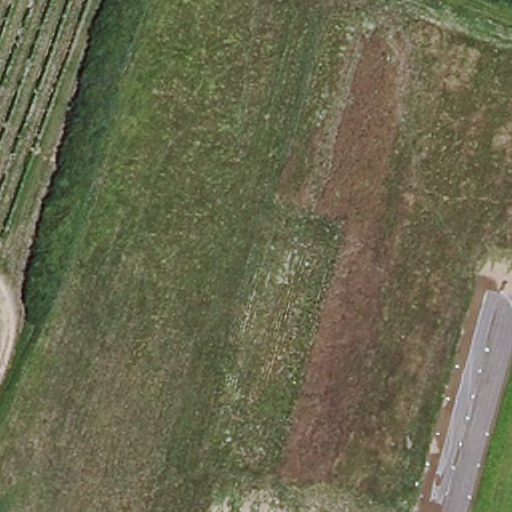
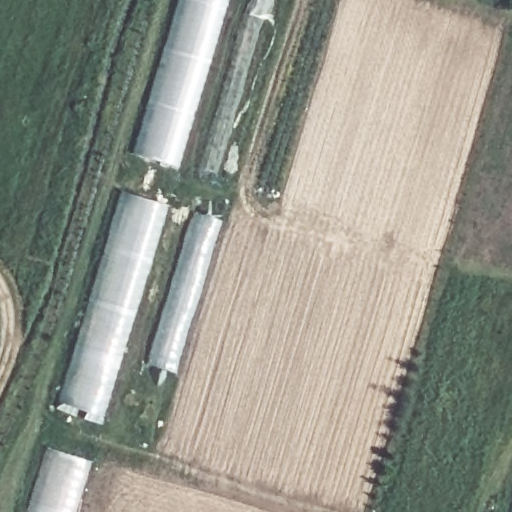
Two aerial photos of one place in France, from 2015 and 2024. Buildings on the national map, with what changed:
new [(229,0),(179,166),(132,152),(178,0),(229,0)]
new [(99,396),(96,415),(67,406),(69,400),(64,398),(124,194),(162,206),(106,397),(99,396)]
new [(52,450),(85,460),(68,512),(33,512),(52,450)]

